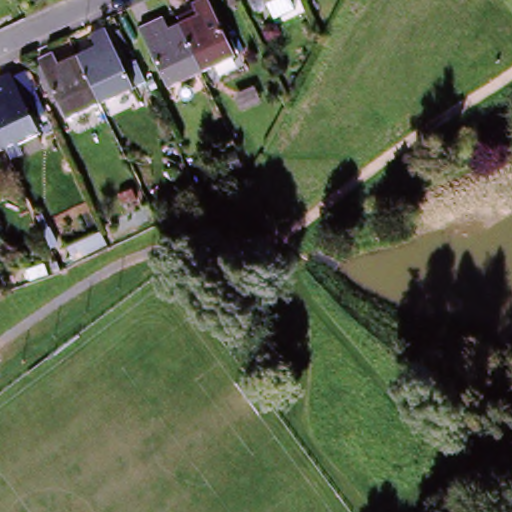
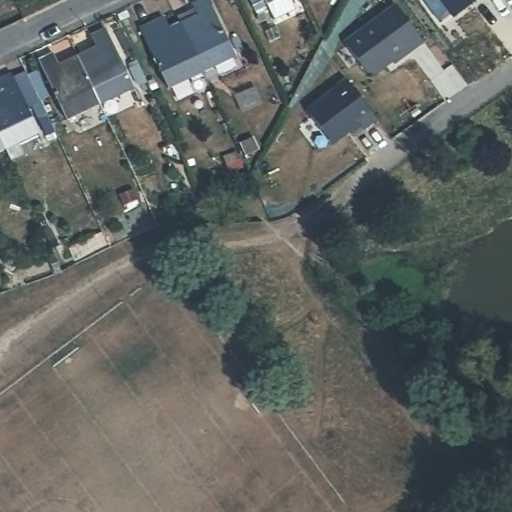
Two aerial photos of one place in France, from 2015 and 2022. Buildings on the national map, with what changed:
unchanged [(260,9),(256,0),(281,0),(260,9)]
new [(423,36),(392,58),(390,55),(373,67),(366,66),(345,36),(396,0),(398,0),(423,36)]
new [(451,18),(439,0),(476,0),(451,18)]
unchanged [(199,20),(194,10),(206,4),(235,62),(202,76),(180,29),(199,20)]
unchanged [(202,76),(167,92),(140,35),(155,28),(163,24),(167,34),(180,29),(202,76)]
unchanged [(75,57),(97,47),(92,38),(106,32),(133,89),(98,105),(75,57)]
unchanged [(236,42),(243,56),(240,57),(232,44),(236,42)]
unchanged [(98,105),(65,120),(39,62),(53,56),(57,65),(75,57),(98,105)]
unchanged [(9,89),(5,79),(19,72),(45,130),(12,145),(0,119),(0,93),(9,89)]
new [(353,82),(376,115),(364,124),(360,117),(330,137),(312,110),(353,82)]
unchanged [(12,145),(0,151),(0,119),(12,145)]
unchanged [(5,162),(3,168),(0,169),(0,151),(5,162)]

